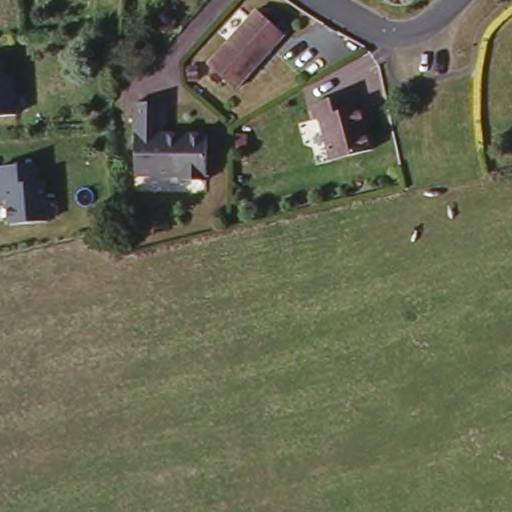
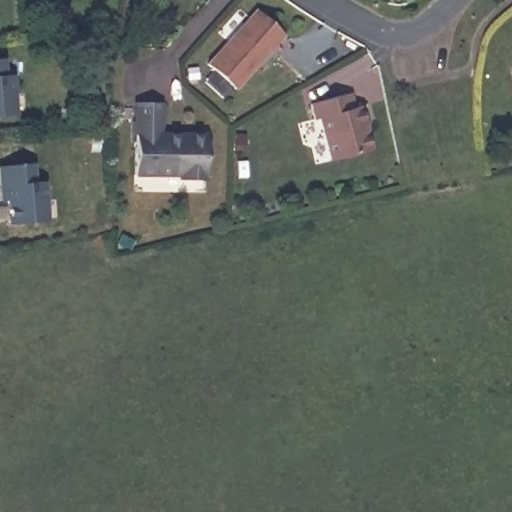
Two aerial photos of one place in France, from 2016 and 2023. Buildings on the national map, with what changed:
unchanged [(283,32),(234,87),(207,62),(254,8),(283,32)]
unchanged [(6,79),(13,77),(15,119),(0,121),(0,61),(5,61),(6,79)]
unchanged [(356,107),(364,105),(369,122),(366,122),(372,148),(333,159),(322,117),(318,118),(313,102),(352,91),(356,107)]
unchanged [(208,176),(183,177),(182,170),(135,171),(134,100),(160,101),(161,132),(166,132),(179,131),(207,131),(208,176)]
unchanged [(48,179),(49,226),(9,227),(7,206),(0,206),(0,169),(34,165),(35,179),(48,179)]

